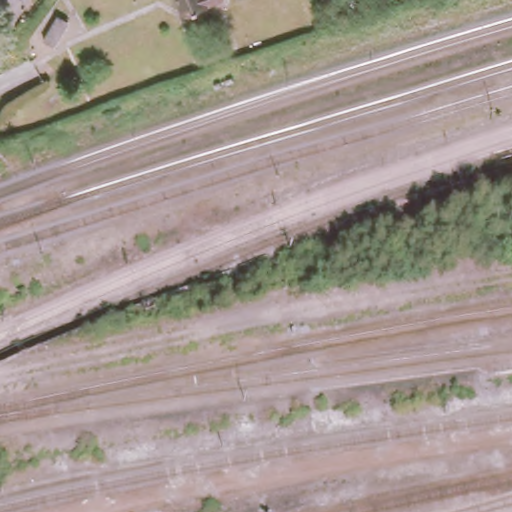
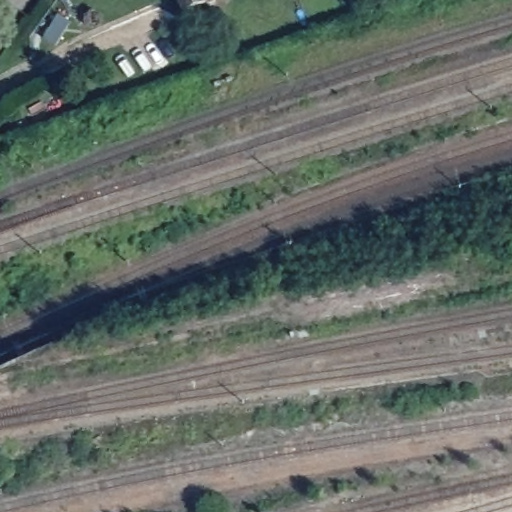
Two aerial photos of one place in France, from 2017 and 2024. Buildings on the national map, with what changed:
unchanged [(176,0),(206,0),(179,9),(176,0)]

